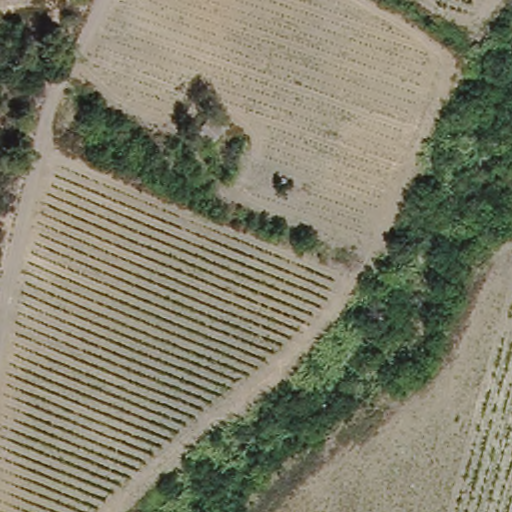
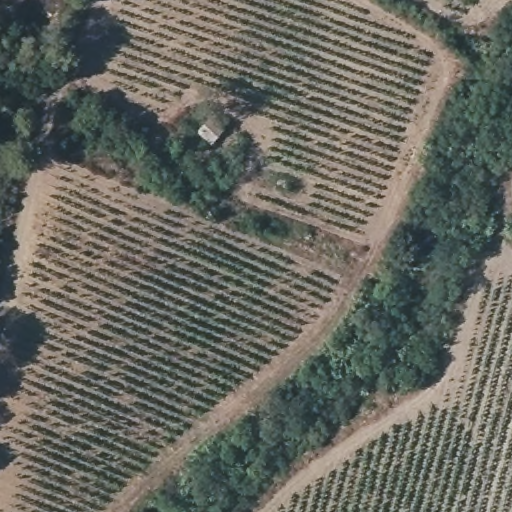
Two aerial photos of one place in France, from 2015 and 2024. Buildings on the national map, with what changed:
unchanged [(210,151),(185,132),(201,114),(225,127),(210,151)]

